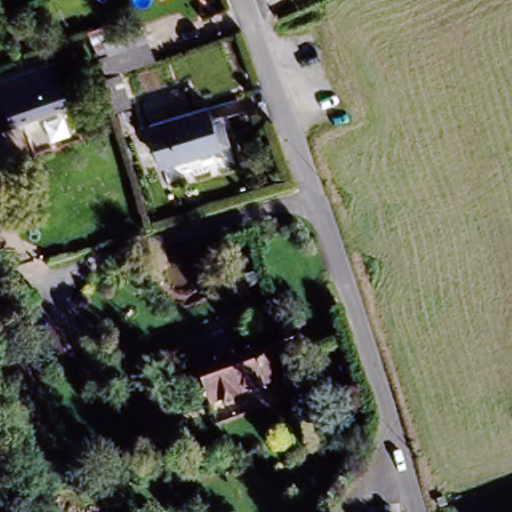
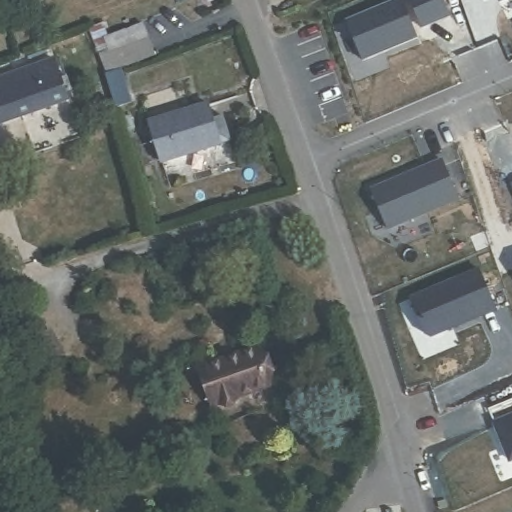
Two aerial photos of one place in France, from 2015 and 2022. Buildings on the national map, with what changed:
new [(345,21),(397,0),(402,0),(418,39),(362,63),(345,21)]
new [(500,3),(499,0),(506,0),(500,3)]
unchanged [(104,24),(114,51),(148,39),(155,55),(108,72),(98,50),(90,29),(104,24)]
demolished [(20,55),(0,63),(0,35),(11,30),(20,55)]
unchanged [(0,78),(50,60),(65,100),(0,124),(0,78)]
unchanged [(122,70),(130,99),(116,104),(107,75),(122,70)]
unchanged [(209,100),(214,114),(224,111),(227,125),(218,127),(221,140),(163,157),(150,117),(209,100)]
new [(441,159),(459,200),(387,230),(369,189),(441,159)]
new [(478,268),(496,311),(427,340),(408,298),(478,268)]
unchanged [(206,362),(258,344),(272,381),(219,399),(213,401),(197,357),(203,355),(206,362)]
new [(491,423),(512,414),(512,462),(509,463),(491,423)]

